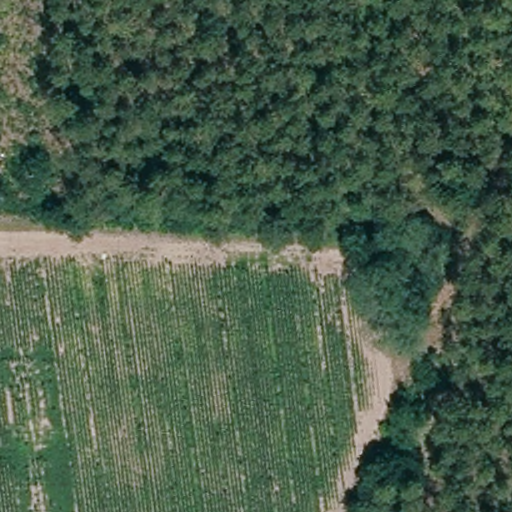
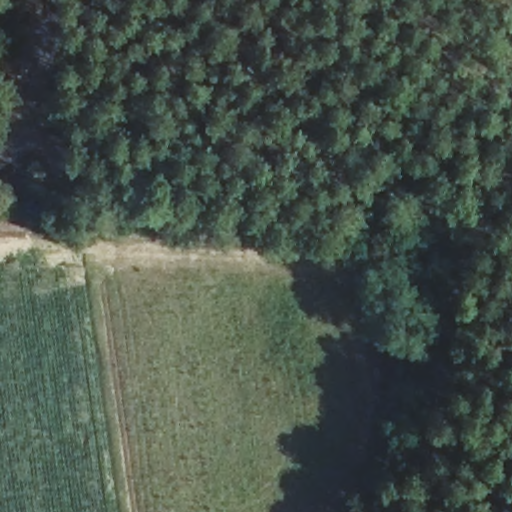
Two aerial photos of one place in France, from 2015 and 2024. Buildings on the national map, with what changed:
[]

